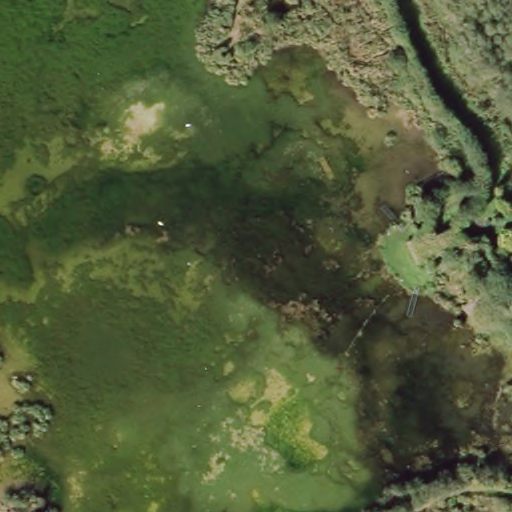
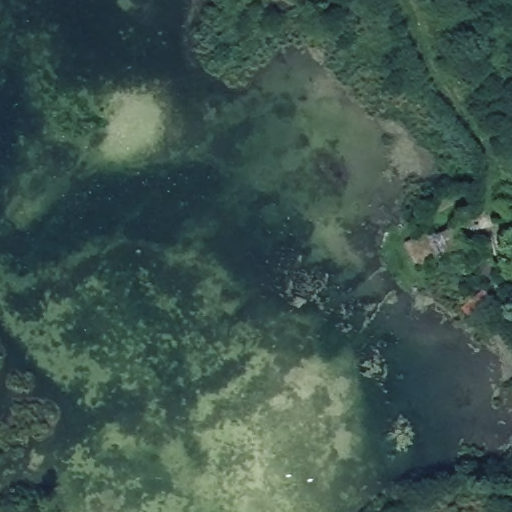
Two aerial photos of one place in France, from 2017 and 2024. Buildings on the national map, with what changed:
unchanged [(439,224),(449,249),(398,270),(387,244),(439,224)]
unchanged [(507,234),(507,246),(486,246),(487,234),(507,234)]
unchanged [(511,251),(512,253),(512,265),(492,274),(487,260),(511,251)]

